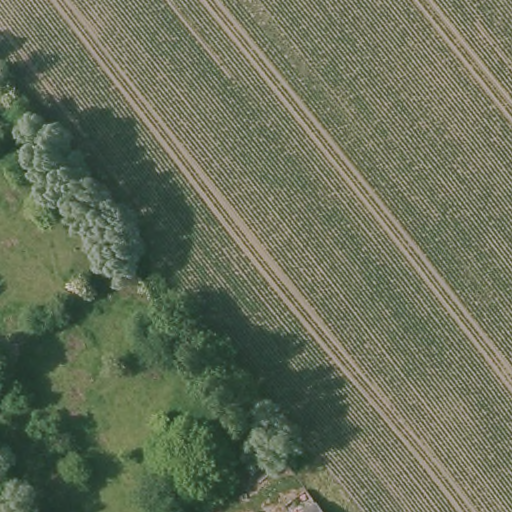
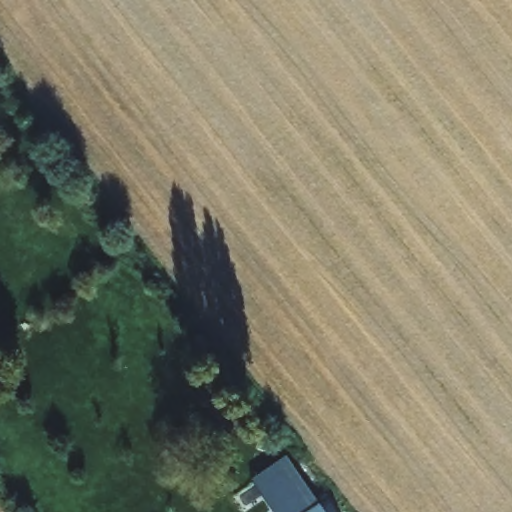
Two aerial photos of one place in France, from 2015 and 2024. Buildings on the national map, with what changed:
new [(285,455),(319,502),(305,512),(273,512),(250,478),(285,455)]
unchanged [(325,512),(305,512),(319,502),(325,512)]

